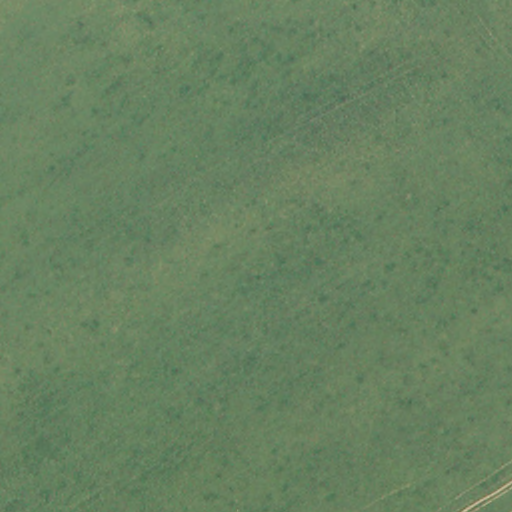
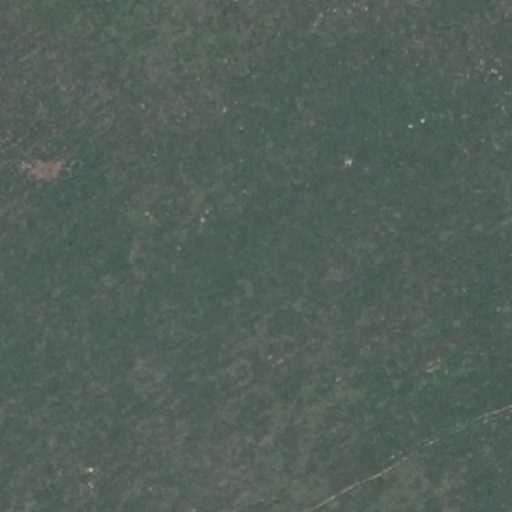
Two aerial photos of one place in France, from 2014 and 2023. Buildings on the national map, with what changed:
[]

